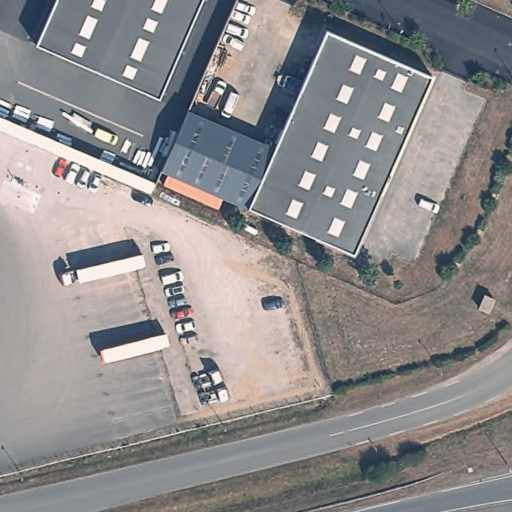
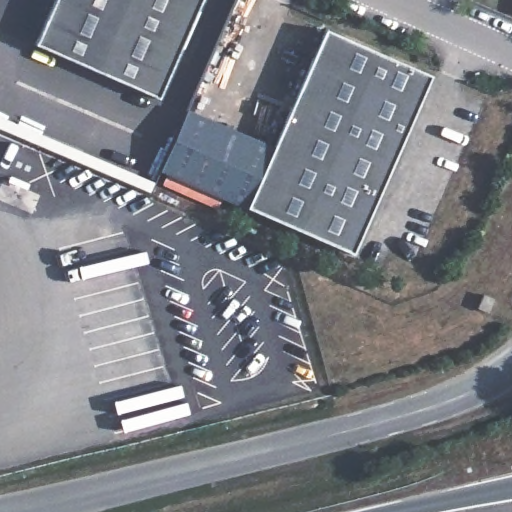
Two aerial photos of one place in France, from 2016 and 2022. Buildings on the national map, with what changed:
unchanged [(60,0),(206,0),(159,106),(36,52),(60,0)]
unchanged [(329,37),(433,84),(354,262),(251,216),(277,158),(329,37)]
unchanged [(222,199),(218,210),(161,186),(166,174),(160,172),(187,111),(273,146),(246,209),(222,199)]
unchanged [(490,304),(484,317),(475,312),(481,299),(490,304)]

